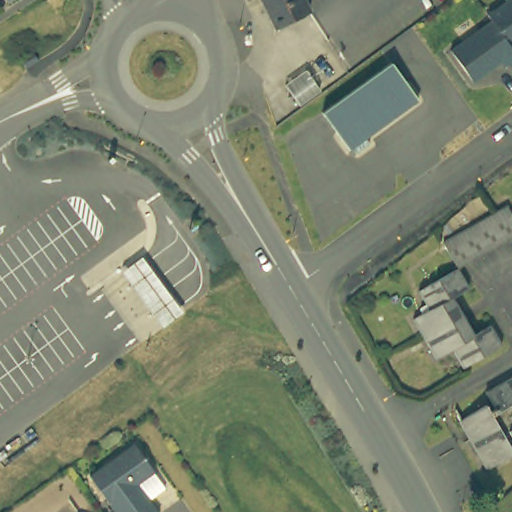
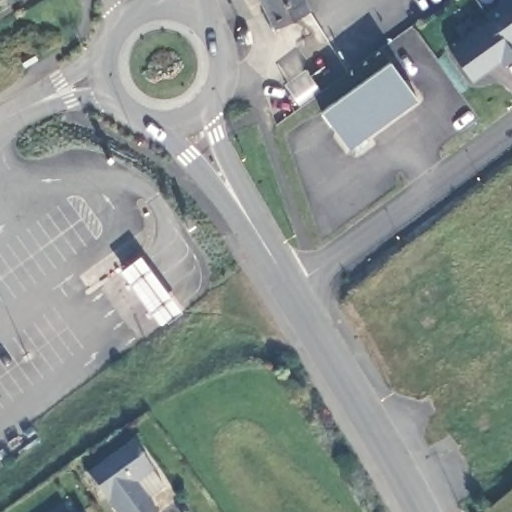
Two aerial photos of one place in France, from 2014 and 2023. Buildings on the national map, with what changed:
unchanged [(268,0),(270,0),(268,1),(268,0)]
unchanged [(275,0),(308,0),(312,8),(288,22),(279,6),(275,0)]
unchanged [(499,0),(512,0),(512,44),(506,48),(485,20),(481,14),(499,0)]
unchanged [(499,66),(495,61),(467,81),(444,50),(485,20),(506,48),(512,56),(499,66)]
unchanged [(29,56),(18,64),(14,56),(24,49),(29,56)]
unchanged [(354,148),(345,145),(318,109),(388,57),(415,94),(358,136),(362,142),(354,148)]
unchanged [(313,90),(292,105),(278,85),(299,71),(313,90)]
demolished [(508,200),(512,206),(512,230),(457,265),(443,239),(508,200)]
unchanged [(141,205),(146,214),(140,217),(135,209),(141,205)]
unchanged [(141,253),(184,308),(164,323),(121,267),(141,253)]
demolished [(453,295),(475,331),(492,320),(503,340),(466,362),(456,345),(438,355),(414,316),(431,306),(420,287),(457,265),(469,285),(453,295)]
demolished [(483,398),(488,395),(478,378),(510,358),(512,361),(512,439),(509,441),(512,445),(512,450),(489,464),(454,407),(479,392),(483,398)]
unchanged [(134,437),(154,465),(137,477),(159,507),(153,512),(121,512),(89,470),(134,437)]
unchanged [(83,512),(71,512),(79,506),(83,512)]

